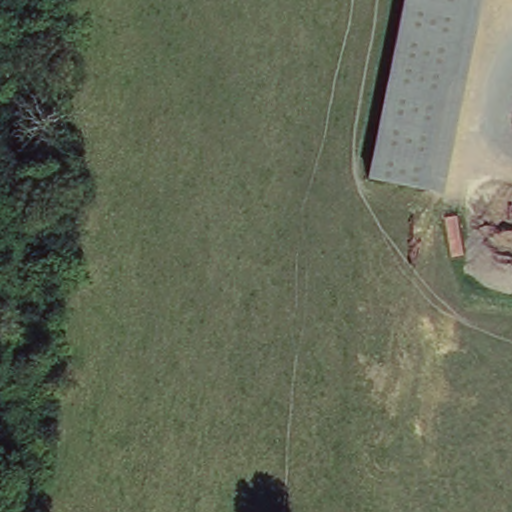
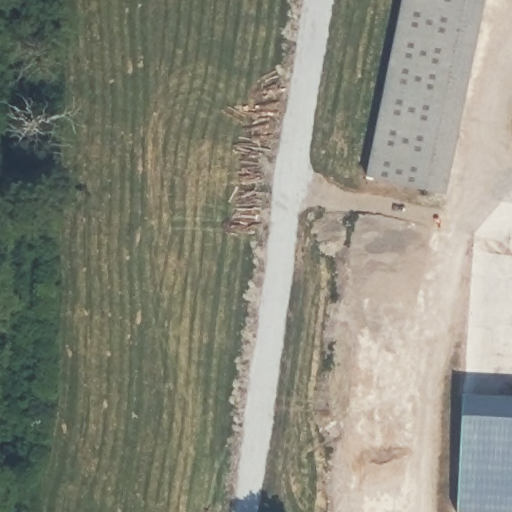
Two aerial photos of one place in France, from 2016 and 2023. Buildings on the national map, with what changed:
unchanged [(437,199),(366,185),(404,0),(481,0),(437,199)]
new [(512,512),(455,512),(461,406),(512,408),(512,512)]

